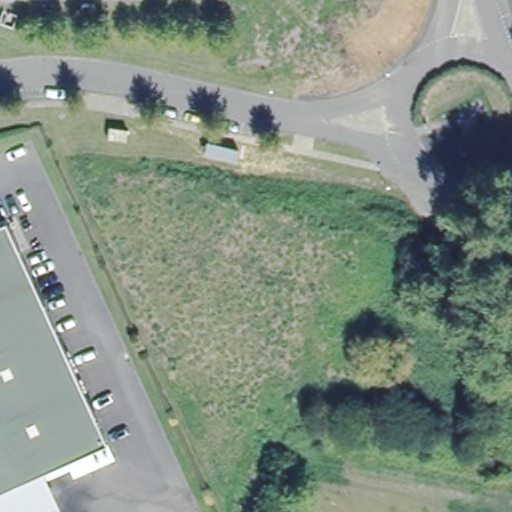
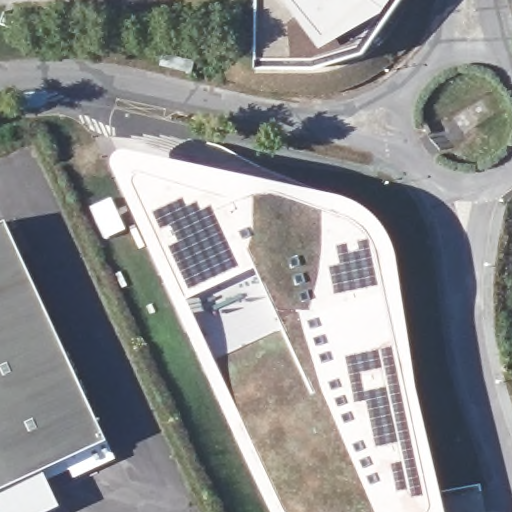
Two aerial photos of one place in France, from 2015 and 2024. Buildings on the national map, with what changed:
new [(361,53),(315,69),(255,67),(258,0),(401,0),(361,53)]
new [(175,301),(113,169),(112,159),(117,151),(125,150),(140,152),(265,179),(336,195),(356,201),(371,211),(383,225),(392,240),(396,253),(401,280),(416,385),(445,512),(273,512),(268,503),(175,301)]
unchanged [(12,221),(92,395),(111,436),(46,466),(0,487),(0,227),(12,221)]
unchanged [(63,501),(40,512),(0,512),(0,487),(46,466),(63,501)]

